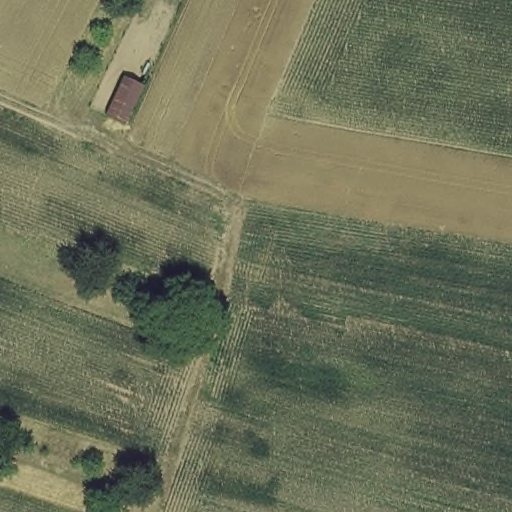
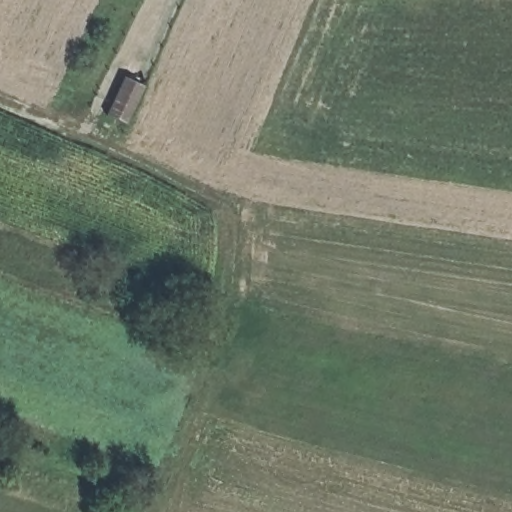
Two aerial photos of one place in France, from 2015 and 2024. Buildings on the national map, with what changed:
unchanged [(103,119),(115,85),(137,95),(127,126),(103,119)]

